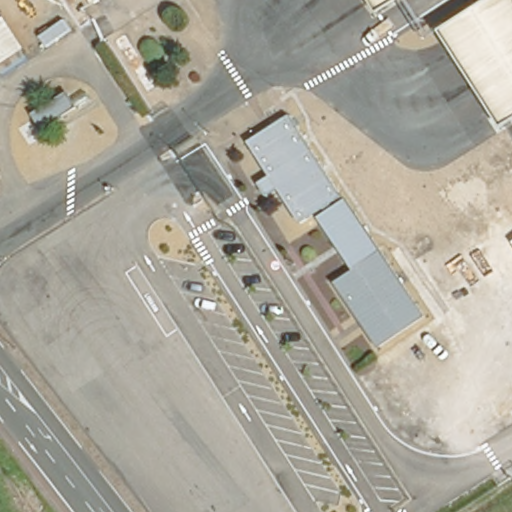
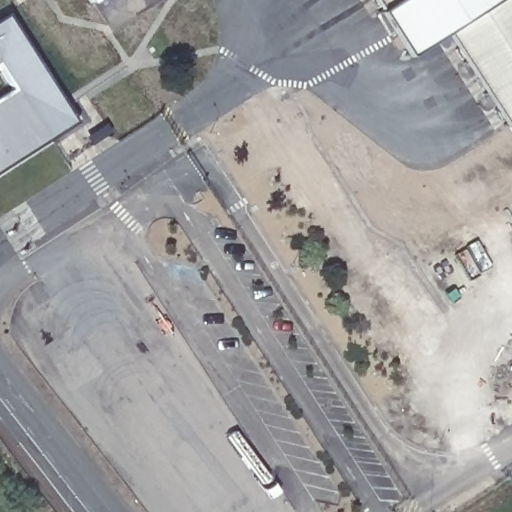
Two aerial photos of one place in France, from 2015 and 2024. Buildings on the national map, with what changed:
unchanged [(95,3),(93,0),(100,0),(95,3)]
unchanged [(380,8),(375,0),(393,0),(380,8)]
new [(393,0),(484,0),(440,29),(442,33),(406,56),(377,10),(380,8),(393,0)]
unchanged [(512,117),(502,123),(442,33),(440,29),(484,0),(512,0),(512,117)]
new [(0,169),(0,97),(12,89),(0,70),(0,19),(6,15),(74,122),(0,169)]
demolished [(75,105),(41,127),(32,112),(66,91),(75,105)]
demolished [(286,114),(339,195),(297,222),(274,187),(265,192),(257,180),(266,174),(244,141),(286,114)]
demolished [(512,211),(512,233),(502,218),(512,211)]
demolished [(423,317),(377,347),(333,280),(380,250),(423,317)]

